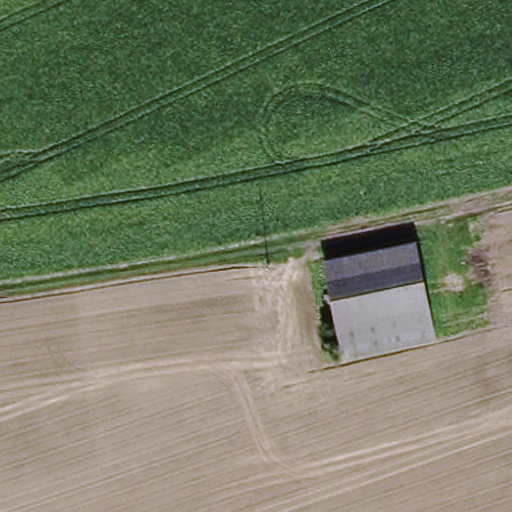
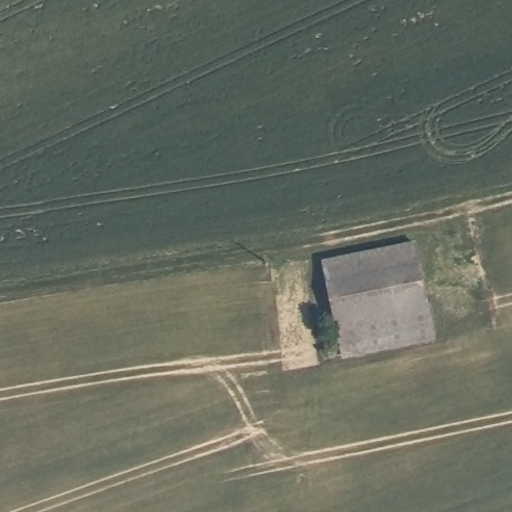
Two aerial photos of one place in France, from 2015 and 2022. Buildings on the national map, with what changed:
unchanged [(415,245),(425,292),(340,309),(332,262),(415,245)]
unchanged [(425,292),(435,342),(350,358),(340,309),(425,292)]

